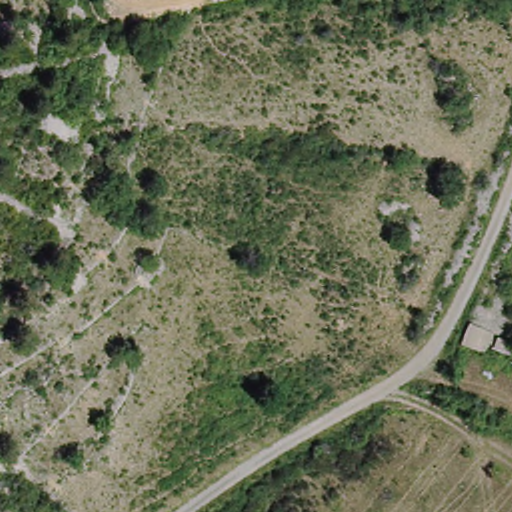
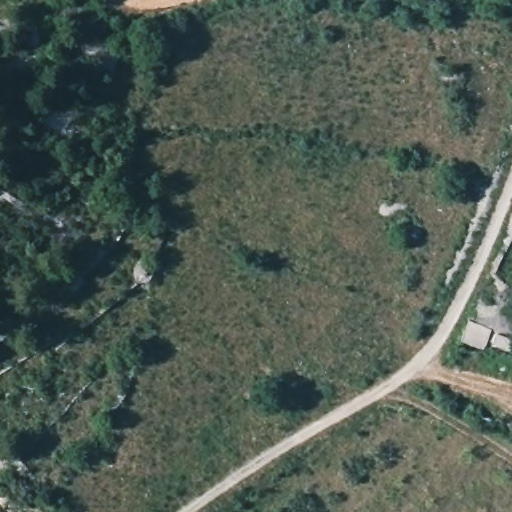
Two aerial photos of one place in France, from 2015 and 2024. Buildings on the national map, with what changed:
unchanged [(498,336),(512,341),(512,357),(491,349),(498,336)]

